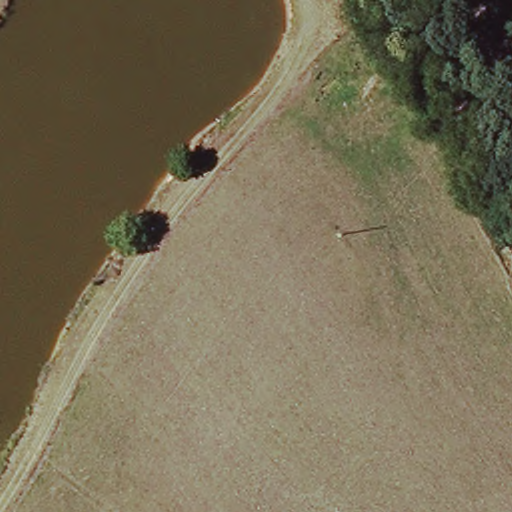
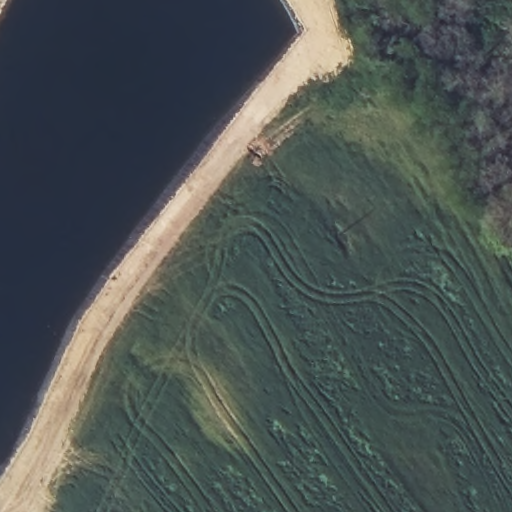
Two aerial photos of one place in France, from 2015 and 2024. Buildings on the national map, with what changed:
[]

